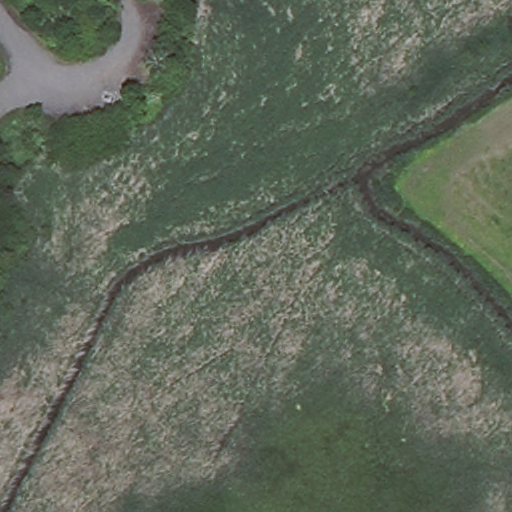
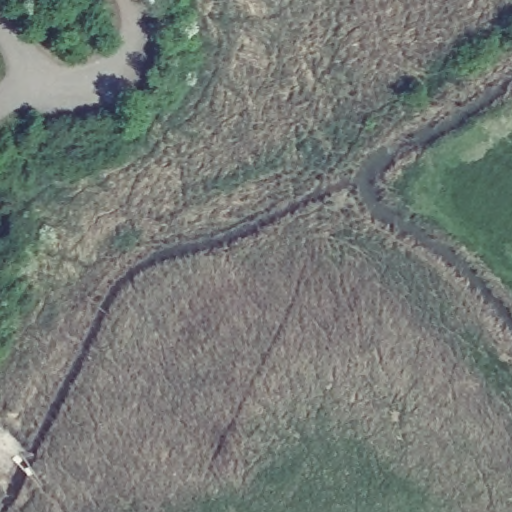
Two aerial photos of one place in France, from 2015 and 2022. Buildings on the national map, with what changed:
[]

